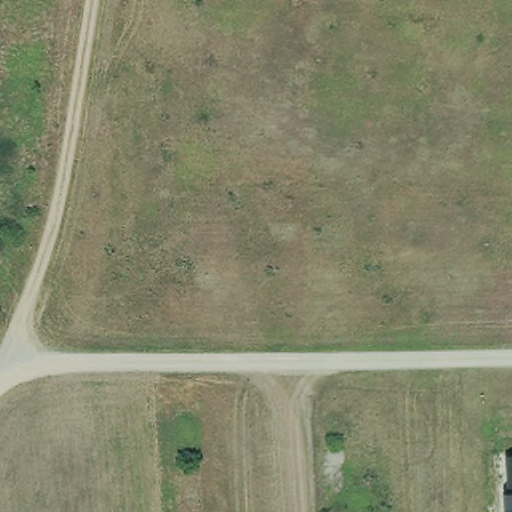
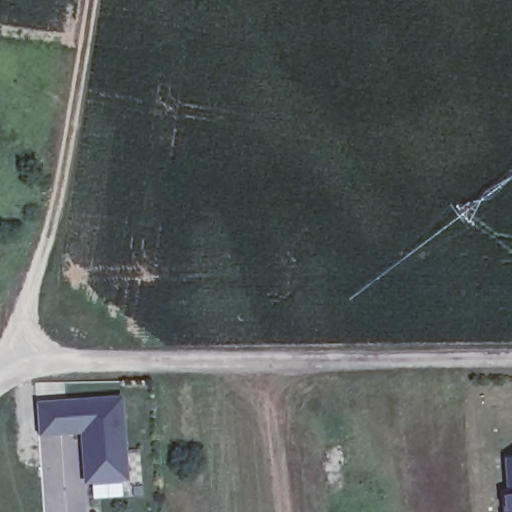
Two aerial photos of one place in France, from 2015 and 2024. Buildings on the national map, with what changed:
new [(85,484),(82,434),(39,437),(36,401),(122,395),(130,481),(85,484)]
unchanged [(509,488),(506,454),(512,454),(512,512),(506,512),(505,488),(509,488)]

